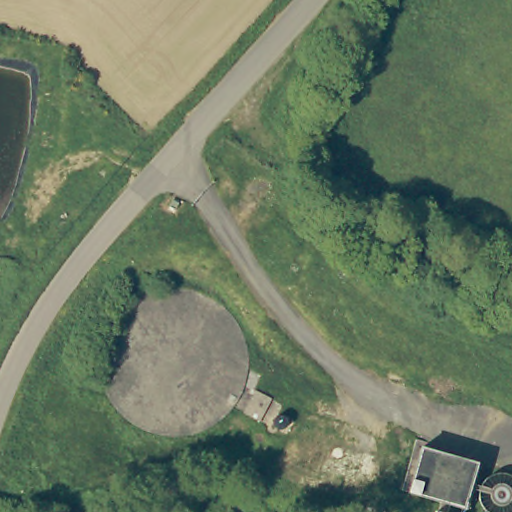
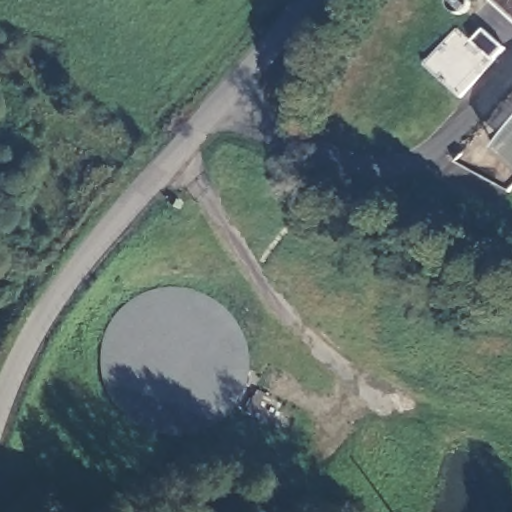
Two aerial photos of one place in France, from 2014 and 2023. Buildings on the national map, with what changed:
new [(489,0),(512,0),(512,20),(489,0)]
new [(506,49),(496,60),(463,97),(427,67),(459,30),(474,42),(484,30),(506,49)]
unchanged [(273,397),(261,420),(244,412),(256,389),(273,397)]
demolished [(421,447),(477,463),(464,507),(409,491),(421,447)]
demolished [(437,510),(445,512),(436,512),(437,510)]

